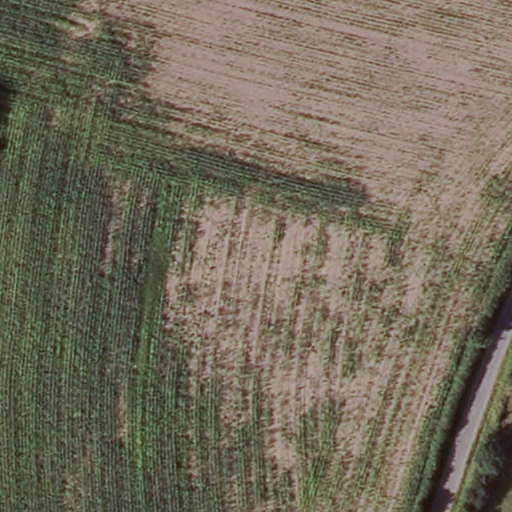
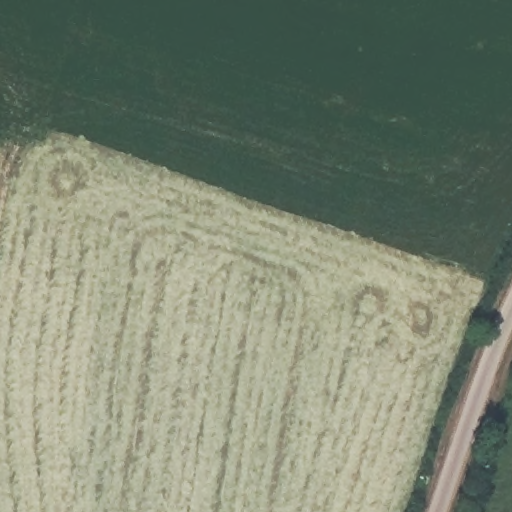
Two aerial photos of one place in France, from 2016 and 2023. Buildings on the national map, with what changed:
[]

